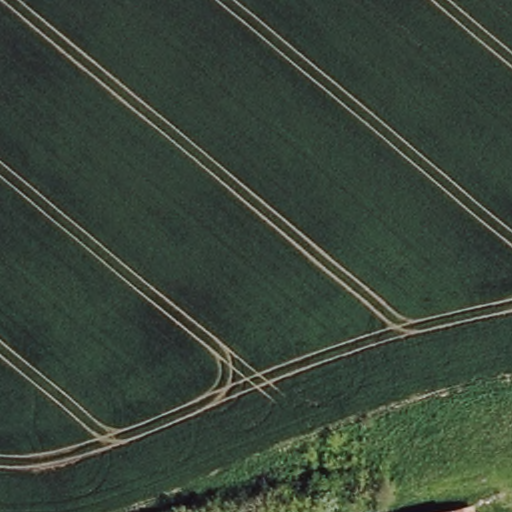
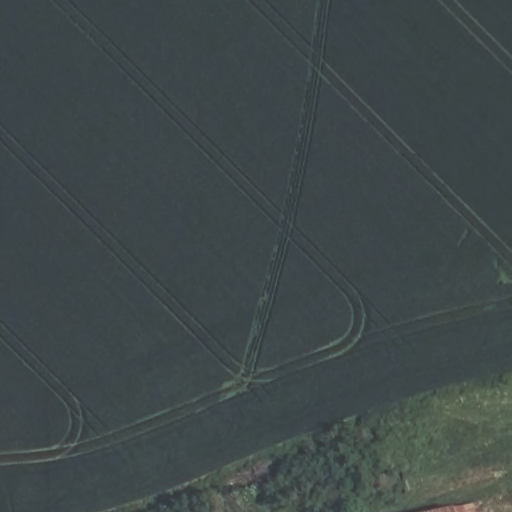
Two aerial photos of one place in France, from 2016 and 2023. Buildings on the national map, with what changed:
unchanged [(475,512),(442,512),(474,505),(475,512)]

